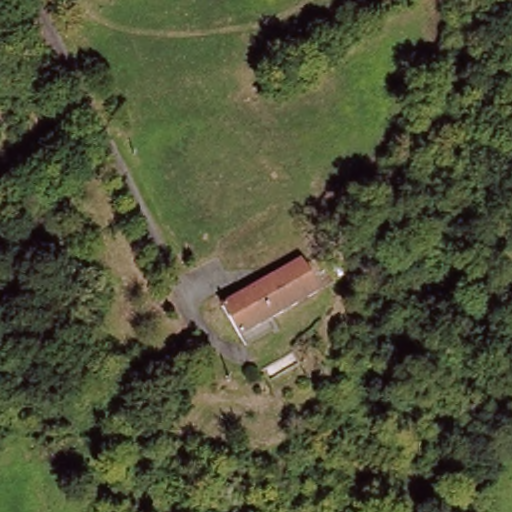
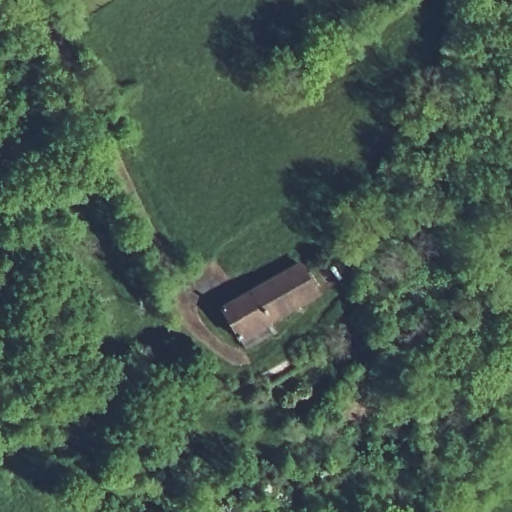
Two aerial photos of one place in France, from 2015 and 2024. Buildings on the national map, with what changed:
unchanged [(291,268),(298,282),(310,297),(230,341),(213,312),(291,268)]

